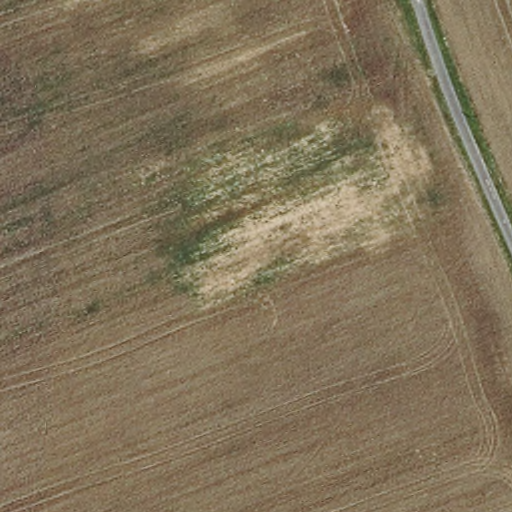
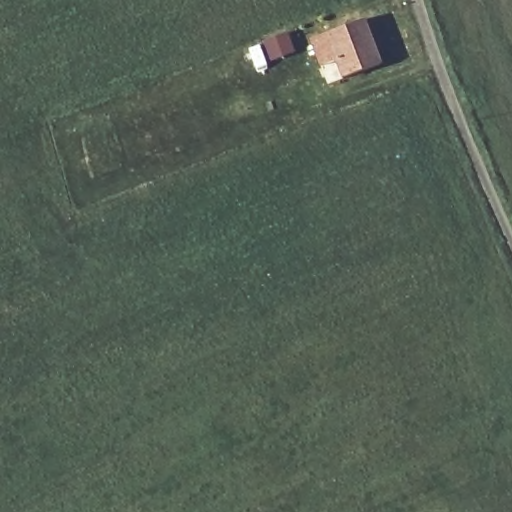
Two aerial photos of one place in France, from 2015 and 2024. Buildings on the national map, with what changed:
new [(366,18),(383,63),(340,79),(335,63),(322,67),(311,38),(366,18)]
new [(288,31),(296,51),(271,60),(263,40),(288,31)]

